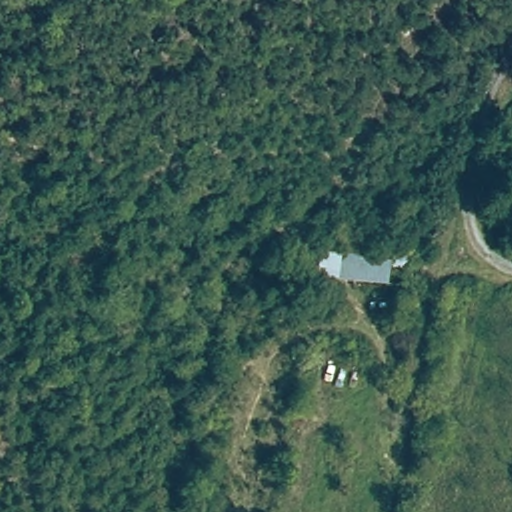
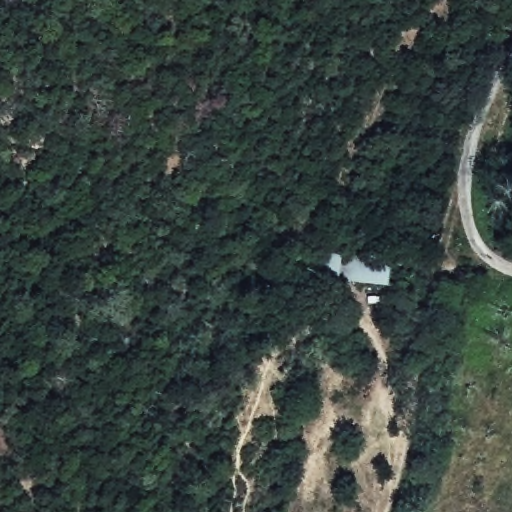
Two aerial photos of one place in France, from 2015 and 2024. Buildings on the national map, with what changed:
unchanged [(338,287),(317,284),(320,252),(345,257),(397,264),(385,289),(338,287)]

